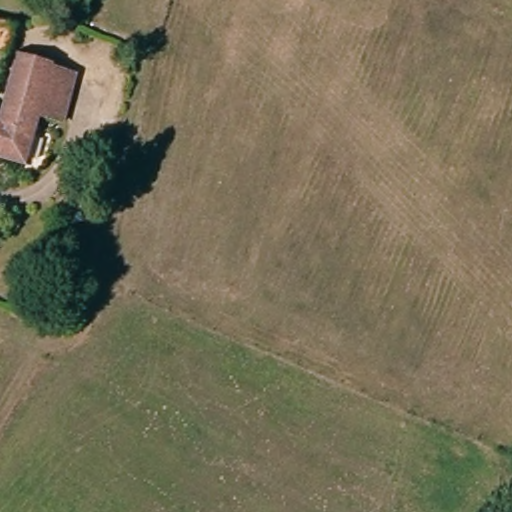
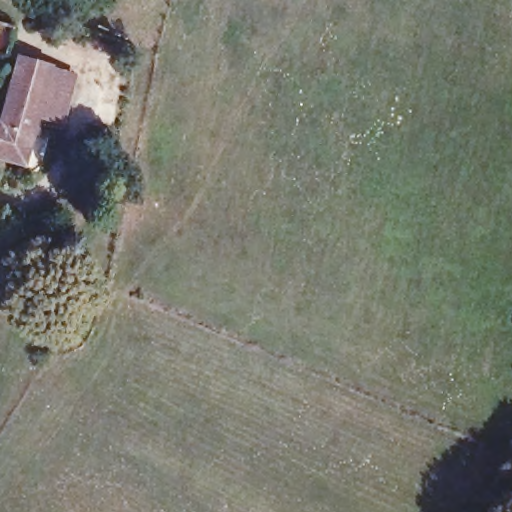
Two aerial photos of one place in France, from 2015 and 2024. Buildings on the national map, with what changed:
unchanged [(0,129),(14,69),(45,76),(65,80),(56,121),(36,116),(25,161),(0,156),(0,129)]

